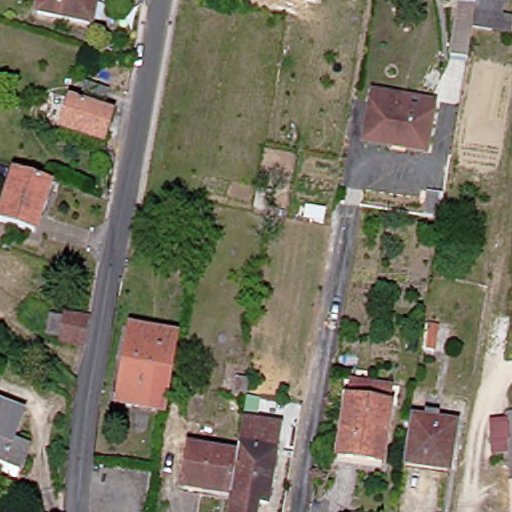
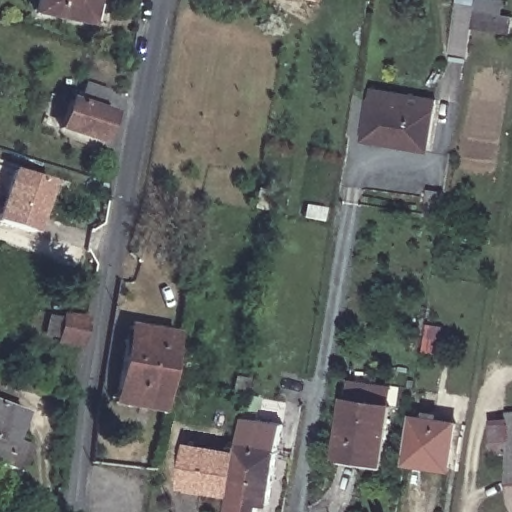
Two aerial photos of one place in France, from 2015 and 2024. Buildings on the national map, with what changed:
unchanged [(36,13),(39,0),(108,0),(101,28),(36,13)]
unchanged [(512,13),(512,31),(478,25),(480,8),(512,13)]
unchanged [(456,60),(463,23),(478,25),(472,62),(456,60)]
unchanged [(83,80),(109,87),(105,100),(80,93),(83,80)]
unchanged [(404,139),(374,134),(380,95),(442,105),(438,137),(437,144),(404,139)]
unchanged [(75,97),(123,112),(113,149),(65,126),(75,97)]
unchanged [(3,222),(19,170),(55,181),(38,232),(3,222)]
unchanged [(424,188),(444,192),(441,219),(419,216),(424,188)]
unchanged [(100,198),(96,211),(83,206),(87,194),(100,198)]
unchanged [(188,233),(184,254),(171,250),(173,238),(167,236),(168,230),(188,233)]
unchanged [(59,340),(59,336),(45,333),(48,315),(63,318),(64,315),(85,318),(81,343),(59,340)]
unchanged [(137,402),(115,399),(122,355),(126,324),(138,326),(176,332),(171,365),(166,393),(163,406),(137,402)]
unchanged [(258,376),(254,393),(240,391),(243,374),(258,376)]
unchanged [(344,456),(346,448),(356,390),(402,398),(392,455),(390,463),(344,456)]
unchanged [(264,512),(232,512),(236,492),(243,453),(254,393),(269,395),(264,416),(277,418),(279,410),(293,412),(291,421),(276,506),(266,505),(264,512)]
unchanged [(20,444),(33,450),(24,473),(11,468),(0,464),(0,406),(30,417),(20,444)]
unchanged [(452,472),(409,465),(417,420),(459,426),(452,472)]
unchanged [(186,490),(188,481),(194,446),(243,453),(236,492),(218,489),(216,494),(186,490)]

